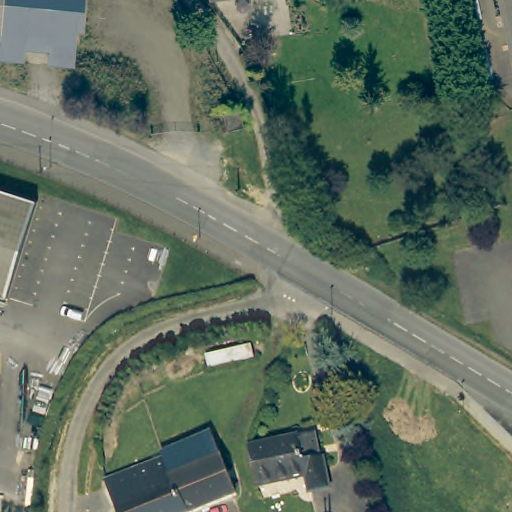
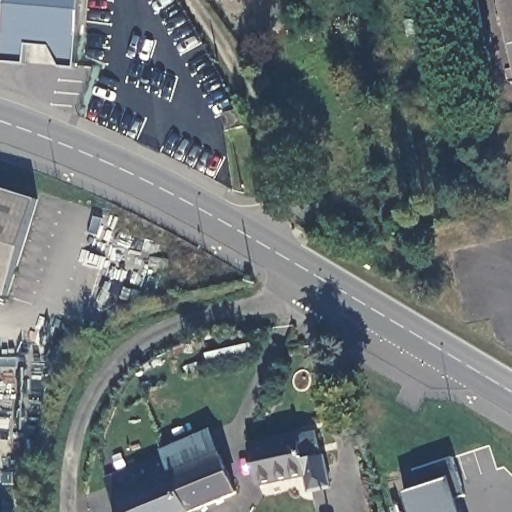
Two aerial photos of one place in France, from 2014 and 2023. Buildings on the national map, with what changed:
unchanged [(70,62),(54,61),(46,42),(21,39),(20,58),(0,56),(0,0),(75,0),(70,62)]
unchanged [(263,2),(209,10),(208,0),(263,0),(263,2)]
unchanged [(263,2),(263,0),(282,0),(263,2)]
unchanged [(512,72),(498,0),(512,0),(512,72)]
unchanged [(237,129),(226,132),(222,116),(239,112),(243,127),(237,129)]
unchanged [(39,202),(9,300),(0,297),(0,190),(39,202)]
unchanged [(247,442),(316,427),(322,462),(325,461),(330,483),(308,488),(304,470),(255,480),(247,442)]
unchanged [(171,475),(163,456),(162,452),(210,432),(220,454),(171,475)]
unchanged [(193,512),(117,512),(104,481),(163,456),(171,475),(220,454),(236,494),(193,512)]
new [(418,488),(414,471),(450,458),(463,493),(457,497),(462,512),(411,512),(404,493),(418,488)]

